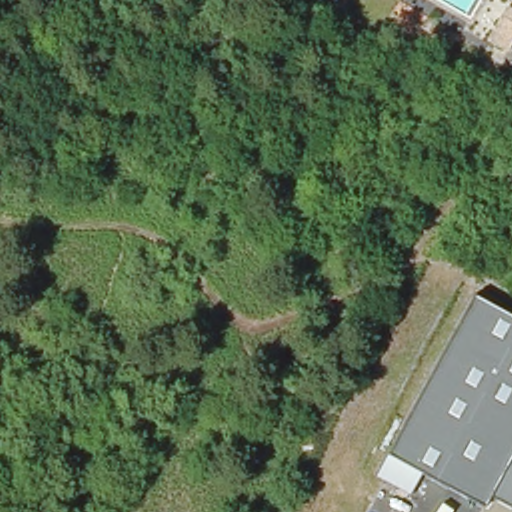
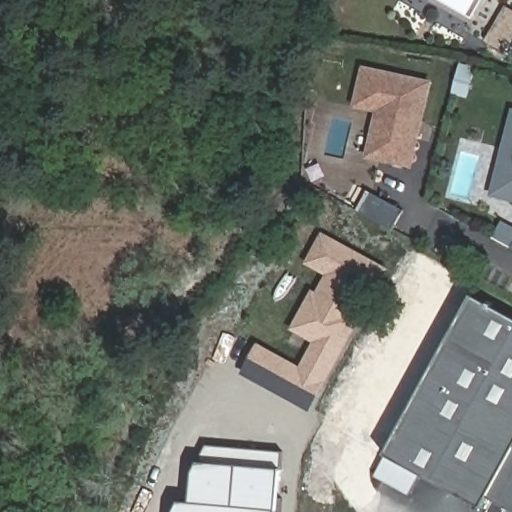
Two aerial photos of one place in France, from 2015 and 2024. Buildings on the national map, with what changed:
unchanged [(510,53),(484,41),(506,5),(512,10),(512,50),(510,53)]
new [(367,158),(377,111),(354,107),(363,66),(433,82),(414,167),(367,158)]
new [(492,196),(512,110),(512,201),(492,196)]
new [(369,191),(402,208),(391,228),(359,210),(369,191)]
new [(302,372),(319,340),(296,328),(314,295),(318,297),(332,273),(311,262),(324,237),(384,270),(364,306),(359,304),(353,316),(357,319),(339,351),(319,388),(309,407),(247,372),(259,349),(302,372)]
unchanged [(488,497),(482,508),(384,455),(472,295),(512,317),(512,510),(488,497)]
new [(179,500),(190,502),(193,472),(207,444),(283,451),(278,512),(173,512),(179,500)]

